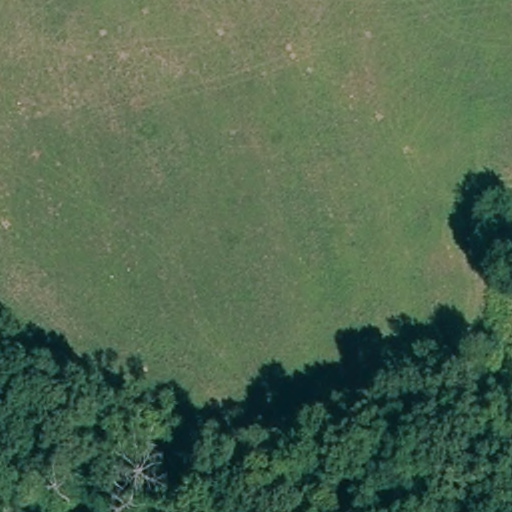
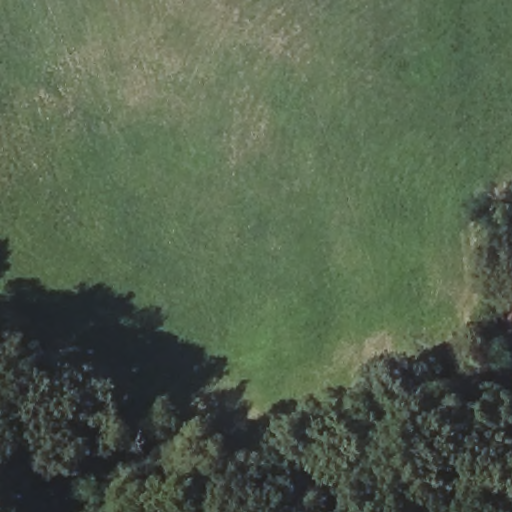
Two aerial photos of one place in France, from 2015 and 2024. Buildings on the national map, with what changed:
[]

